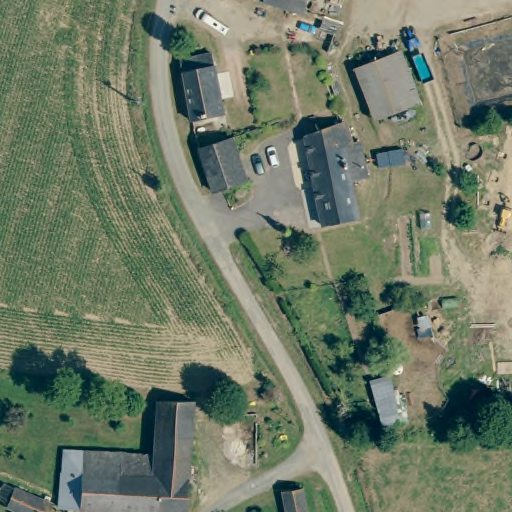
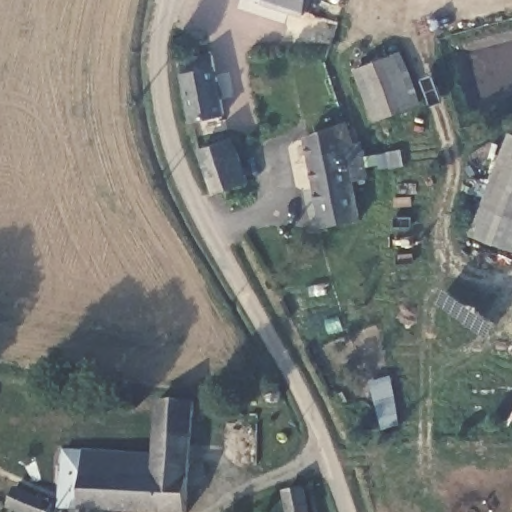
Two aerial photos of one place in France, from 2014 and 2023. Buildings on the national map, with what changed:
unchanged [(263,0),(312,0),(308,14),(263,0)]
unchanged [(212,48),(225,108),(192,116),(180,56),(212,48)]
unchanged [(376,121),(356,69),(396,54),(406,81),(413,79),(421,103),(376,121)]
unchanged [(308,153),(305,138),(313,136),(313,134),(346,122),(351,143),(360,141),(368,178),(352,181),(359,220),(324,227),(308,153)]
new [(472,234),(511,130),(512,131),(512,248),(472,234)]
unchanged [(200,146),(233,132),(249,176),(214,187),(200,146)]
unchanged [(383,428),(371,381),(389,376),(402,423),(383,428)]
unchanged [(271,388),(274,387),(274,388),(275,388),(278,389),(279,391),(280,393),(280,395),(280,397),(279,399),(277,401),(275,402),(273,402),(270,402),(268,401),(267,399),(265,397),(265,394),(265,393),(266,392),(267,390),(269,388),(271,388)]
unchanged [(64,450),(154,455),(155,438),(158,402),(193,401),(186,512),(126,512),(59,508),(64,450)]
unchanged [(15,488),(49,502),(46,512),(16,512),(7,508),(15,488)]
unchanged [(303,489),(308,512),(287,512),(284,493),(303,489)]

